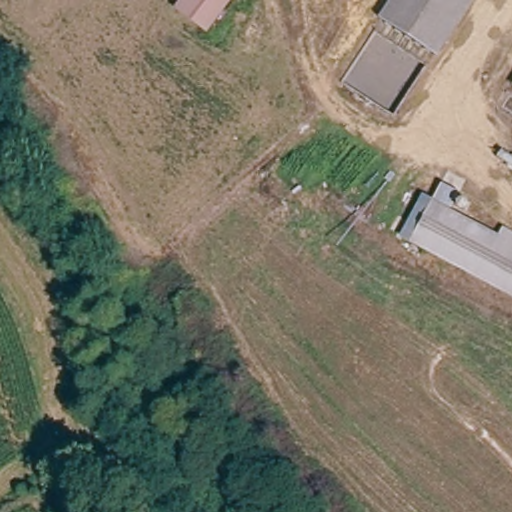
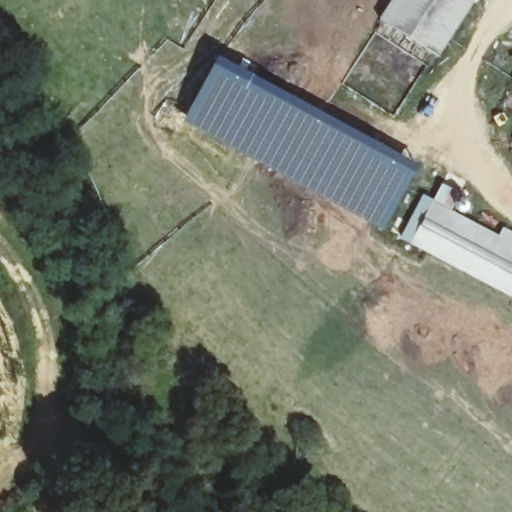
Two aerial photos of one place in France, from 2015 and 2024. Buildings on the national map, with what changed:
unchanged [(175,12),(183,0),(232,0),(208,34),(175,12)]
demolished [(263,66),(232,46),(266,0),(267,0),(298,21),(263,66)]
unchanged [(383,33),(403,0),(476,0),(437,67),(383,33)]
new [(383,230),(182,122),(216,57),(417,164),(383,230)]
unchanged [(410,250),(431,207),(496,240),(502,230),(512,236),(512,299),(410,250)]

